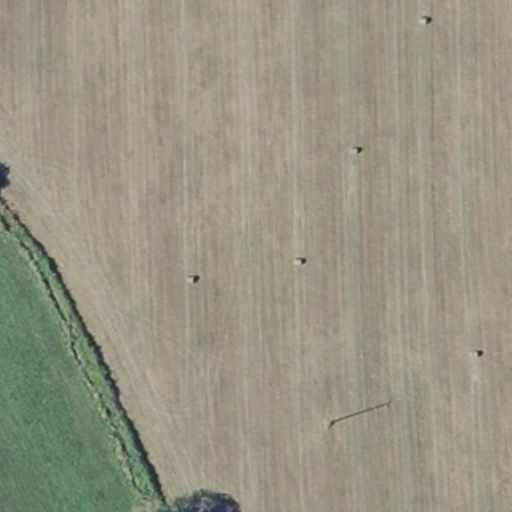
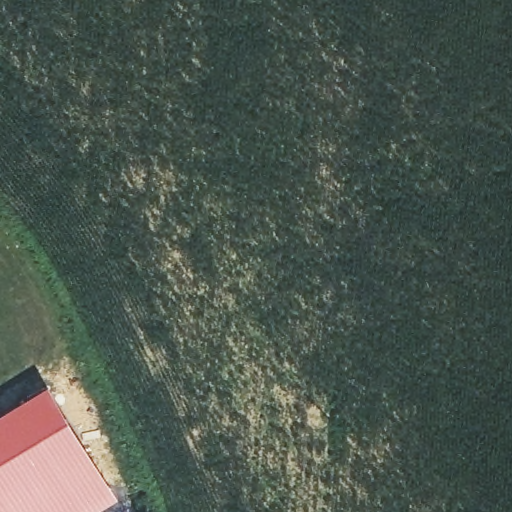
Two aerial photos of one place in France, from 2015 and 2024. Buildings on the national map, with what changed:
new [(51,382),(87,438),(120,495),(94,512),(0,512),(0,411),(51,382)]

